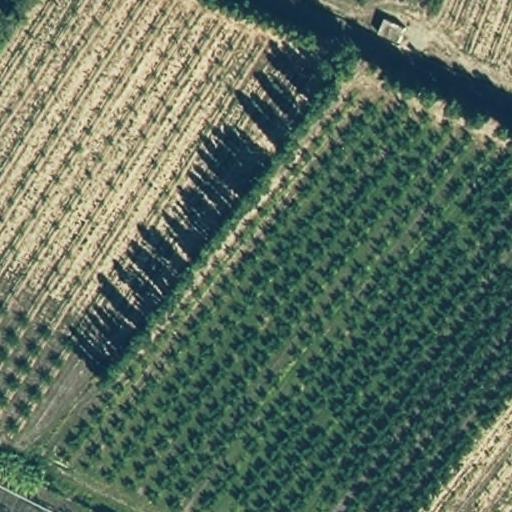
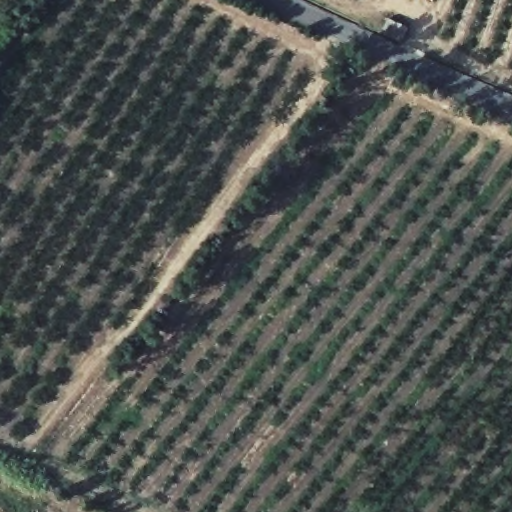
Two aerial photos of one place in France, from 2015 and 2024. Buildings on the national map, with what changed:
unchanged [(378,34),(384,17),(406,26),(400,43),(378,34)]

